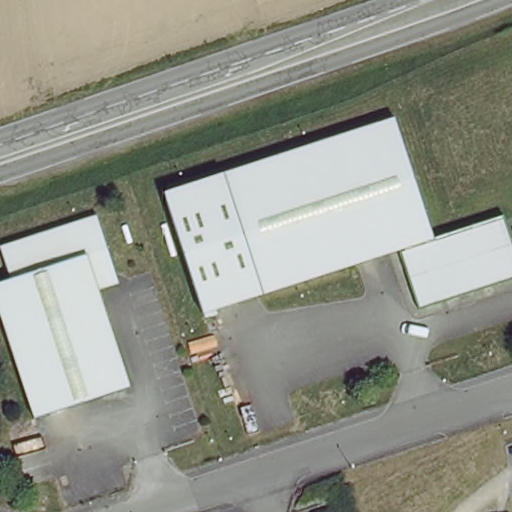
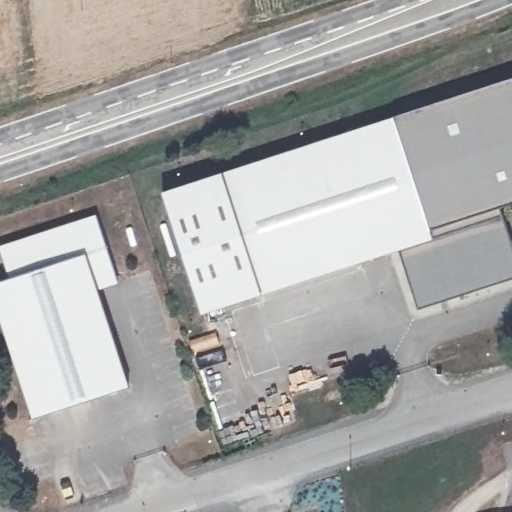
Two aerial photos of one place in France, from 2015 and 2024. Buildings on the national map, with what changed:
new [(502,220),(430,243),(394,119),(512,80),(512,202),(498,207),(502,220)]
unchanged [(394,119),(430,243),(502,220),(510,246),(512,245),(512,283),(416,313),(397,253),(196,314),(158,191),(394,119)]
unchanged [(29,415),(0,329),(0,276),(4,275),(0,262),(0,238),(90,210),(111,270),(114,279),(94,285),(124,384),(29,415)]

